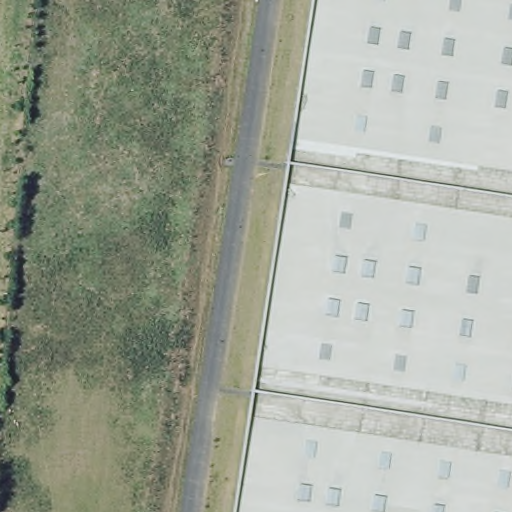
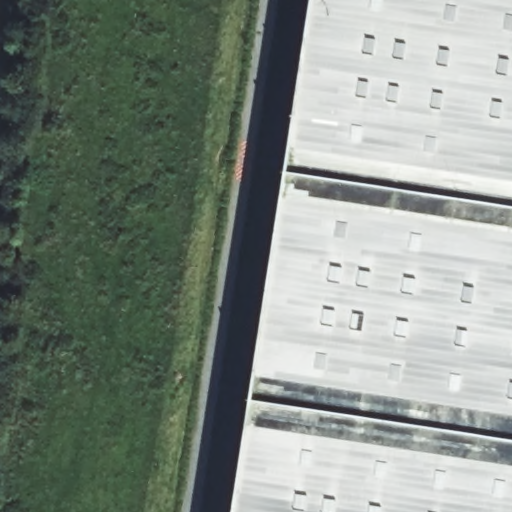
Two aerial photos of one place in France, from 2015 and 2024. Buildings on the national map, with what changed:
unchanged [(512,0),(512,512),(241,512),(320,0),(512,0)]

